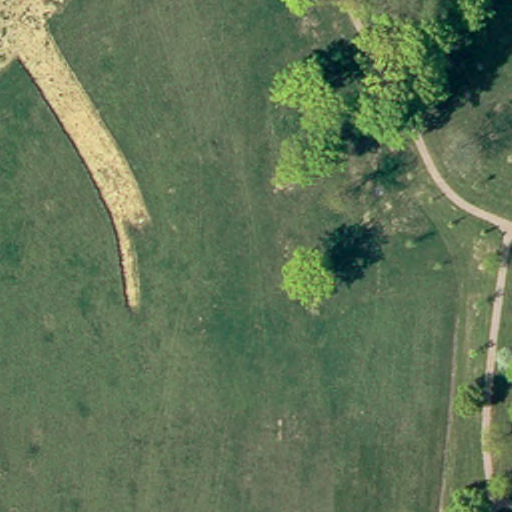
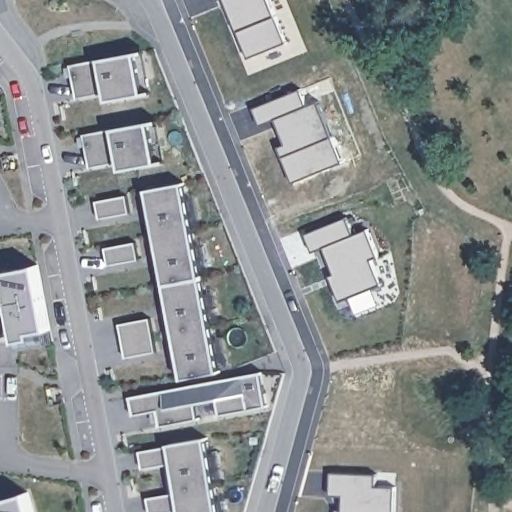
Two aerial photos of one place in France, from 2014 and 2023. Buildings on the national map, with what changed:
new [(72,65),(102,59),(137,53),(145,51),(153,91),(147,91),(110,99),(107,91),(79,99),(72,65)]
new [(7,92),(0,97),(0,83),(7,92)]
new [(277,119),(262,125),(255,108),(302,88),(310,105),(320,100),(345,161),(295,182),(284,156),(280,146),(287,144),(277,119)]
new [(115,128),(152,121),(160,119),(167,159),(160,161),(122,169),(121,161),(90,166),(84,135),(115,128)]
new [(185,183),(220,371),(185,377),(148,189),(185,183)]
new [(127,195),(130,213),(100,218),(97,200),(127,195)]
new [(326,248),(314,252),(306,234),(350,216),(357,234),(370,228),(382,256),(375,259),(385,284),(342,302),(335,282),(332,275),(337,273),(326,248)]
new [(136,242),(139,259),(109,265),(106,247),(136,242)]
new [(10,300),(7,271),(37,265),(50,325),(52,342),(20,348),(19,340),(13,312),(6,313),(5,337),(0,337),(0,299),(10,300)]
new [(157,351),(127,356),(121,322),(151,318),(157,351)]
new [(262,372),(267,406),(220,415),(219,399),(197,404),(200,418),(160,425),(157,409),(134,413),(131,396),(262,372)]
new [(177,492),(173,463),(143,468),(140,451),(170,444),(207,438),(220,512),(182,512),(182,510),(167,512),(151,512),(149,496),(177,492)]
new [(344,510),(344,496),(331,496),(332,472),(378,474),(378,486),(397,486),(397,512),(337,512),(337,509),(344,510)]
new [(29,492),(34,512),(0,512),(0,500),(29,492)]

